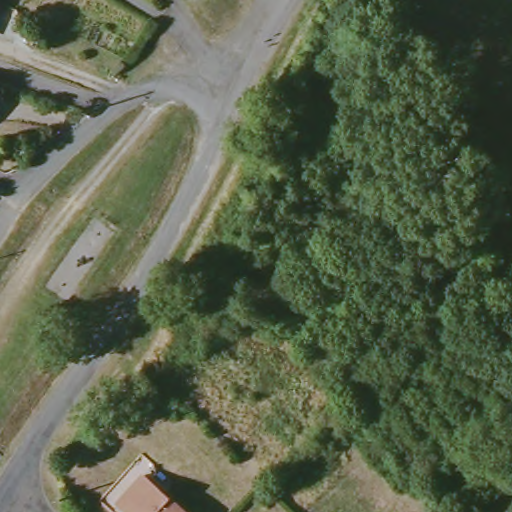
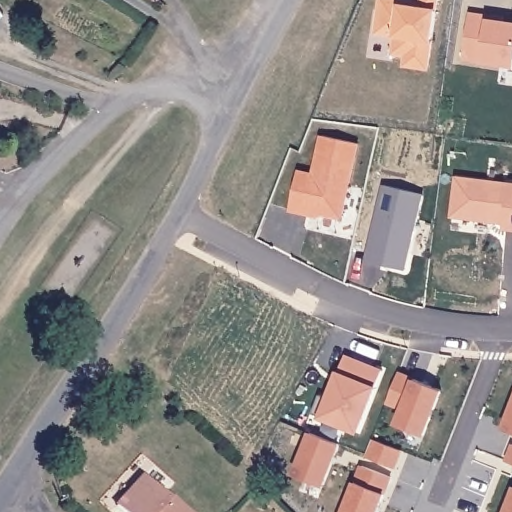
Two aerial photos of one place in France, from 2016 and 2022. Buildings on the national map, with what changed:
new [(378,0),(415,0),(419,1),(419,0),(440,0),(439,9),(435,44),(431,72),(402,68),(404,58),(391,56),(393,39),(373,37),(378,0)]
new [(488,20),(512,23),(512,65),(463,59),(469,14),(489,17),(488,20)]
new [(298,172),(314,175),(322,136),(358,144),(342,218),(308,210),(307,214),(290,211),(298,172)]
new [(503,224),(452,218),(455,178),(512,183),(512,232),(502,231),(503,224)]
new [(383,187),(422,196),(407,271),(365,261),(383,187)]
new [(359,432),(312,414),(320,395),(325,397),(334,371),(338,373),(345,356),(382,371),(359,432)]
new [(397,425),(400,411),(386,404),(399,372),(414,377),(412,380),(442,392),(425,436),(397,425)]
new [(512,403),(512,433),(502,429),(512,403)]
new [(292,475),(308,434),(340,444),(324,487),(292,475)]
new [(360,468),(390,479),(385,495),(379,512),(342,512),(352,485),(360,468)]
unchanged [(144,473),(184,512),(124,512),(115,503),(144,473)]
new [(512,512),(505,512),(512,494),(512,512)]

